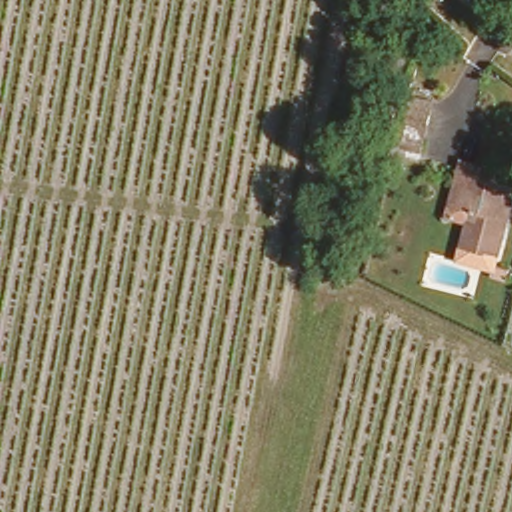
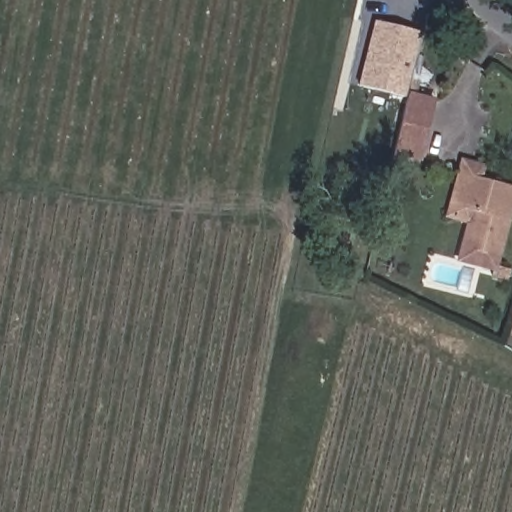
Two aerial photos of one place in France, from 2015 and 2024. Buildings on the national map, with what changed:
new [(358,85),(374,20),(420,33),(405,96),(358,85)]
demolished [(426,87),(417,126),(393,120),(403,81),(426,87)]
new [(436,103),(422,161),(398,154),(415,97),(436,103)]
unchanged [(496,253),(461,243),(471,205),(462,202),(452,200),(461,167),(472,170),(512,181),(512,194),(496,253)]

